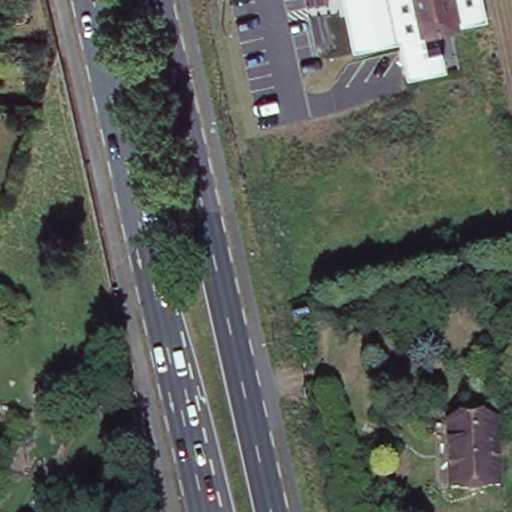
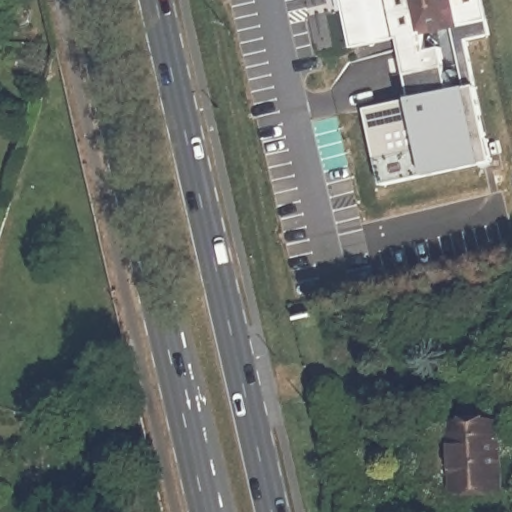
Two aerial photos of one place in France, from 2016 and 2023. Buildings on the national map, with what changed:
unchanged [(397,43),(353,52),(342,0),(415,0),(422,32),(426,53),(442,49),(446,67),(405,75),(397,43)]
unchanged [(422,32),(415,0),(455,0),(460,24),(422,32)]
unchanged [(455,0),(483,0),(487,20),(460,24),(455,0)]
new [(363,109),(410,100),(405,75),(446,67),(450,90),(477,85),(493,165),(379,189),(364,112),(363,109)]
unchanged [(498,416),(500,482),(450,483),(448,419),(498,416)]

